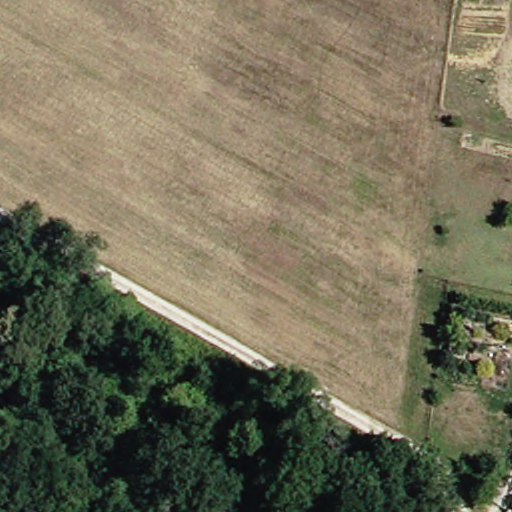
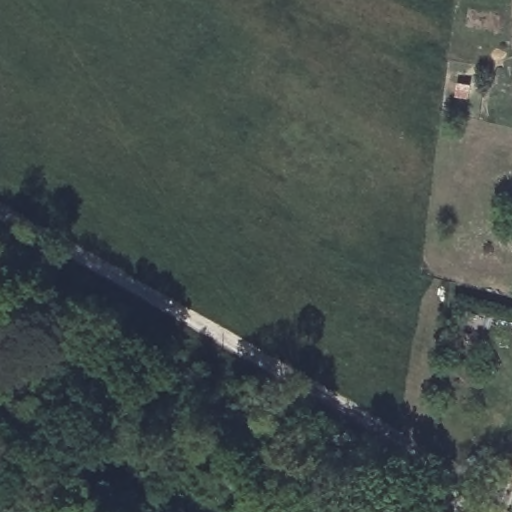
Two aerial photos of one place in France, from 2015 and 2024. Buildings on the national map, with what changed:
[]

